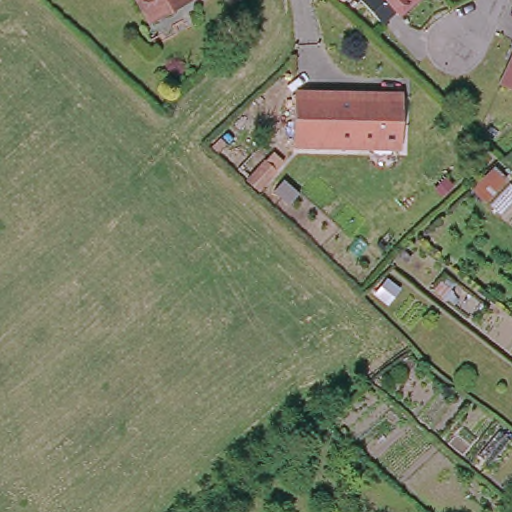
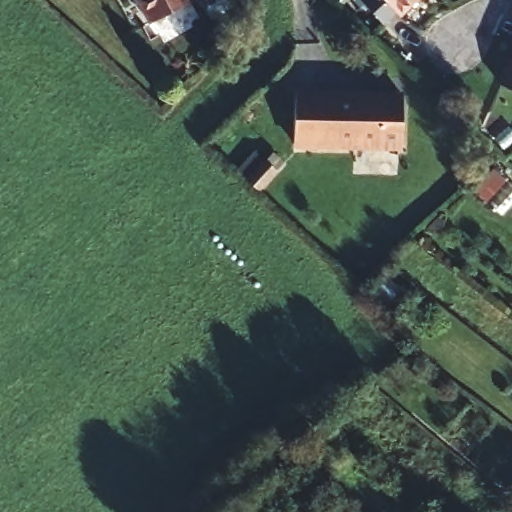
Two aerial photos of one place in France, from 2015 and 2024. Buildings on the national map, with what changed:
unchanged [(190,4),(152,24),(139,0),(189,0),(190,4)]
unchanged [(421,8),(417,12),(414,9),(402,22),(378,0),(428,0),(421,8)]
unchanged [(407,100),(398,154),(300,141),(307,86),(407,100)]
unchanged [(512,194),(494,212),(470,186),(497,164),(512,181),(512,194)]
unchanged [(267,166),(275,172),(257,192),(250,185),(267,166)]

